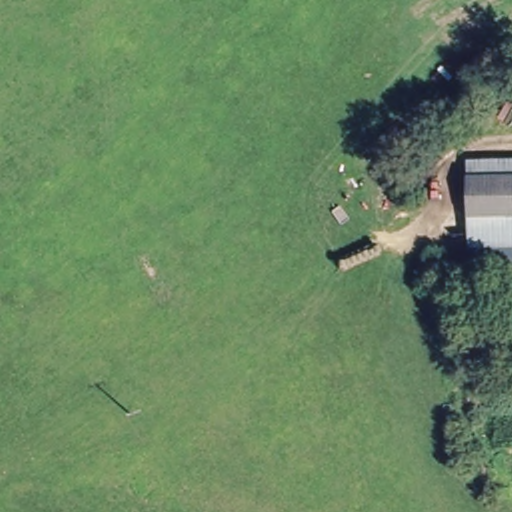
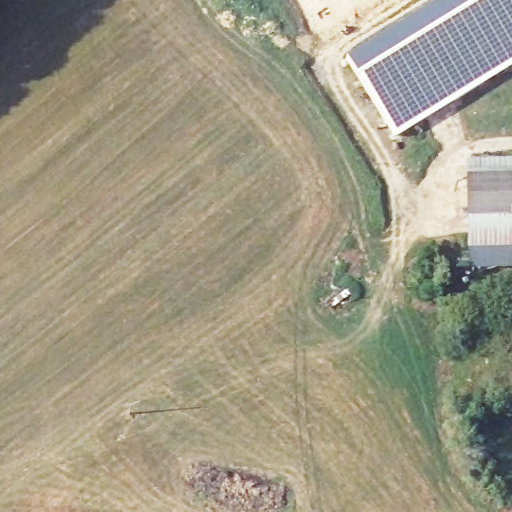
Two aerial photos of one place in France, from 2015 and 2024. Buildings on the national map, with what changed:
new [(396,138),(348,57),(441,0),(512,0),(512,67),(396,138)]
demolished [(512,157),(512,244),(459,244),(460,159),(512,157)]
new [(468,244),(469,158),(512,159),(512,246),(468,244)]

